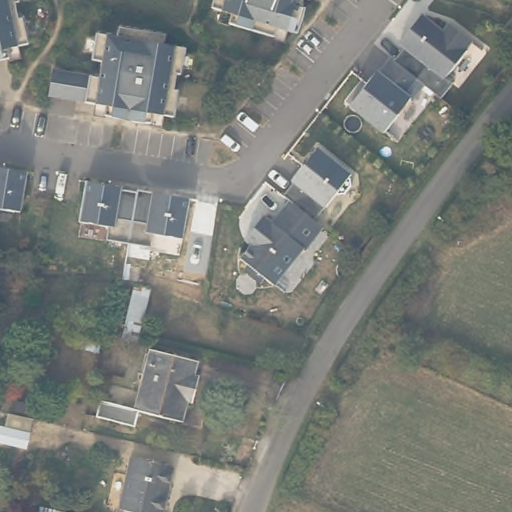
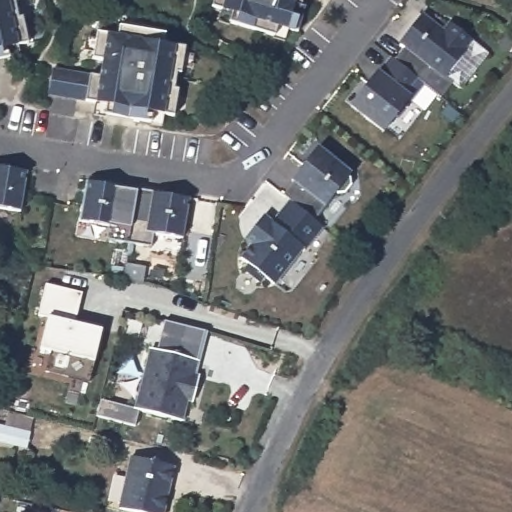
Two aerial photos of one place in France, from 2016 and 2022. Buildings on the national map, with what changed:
unchanged [(0,0),(19,0),(19,1),(14,1),(18,17),(22,16),(28,43),(7,47),(9,57),(0,59),(0,0)]
unchanged [(301,5),(305,6),(297,32),(279,26),(277,26),(275,31),(274,35),(272,35),(228,21),(231,12),(211,6),(213,0),(302,0),(301,5)]
unchanged [(404,46),(399,42),(421,14),(442,30),(449,22),(472,40),(465,48),(466,49),(444,76),(452,82),(440,97),(423,84),(411,99),(409,97),(383,131),(350,104),(377,70),(379,72),(391,57),(394,59),(404,46)]
unchanged [(505,24),(512,16),(512,30),(505,24)]
unchanged [(105,104),(84,101),(48,95),(52,68),(98,76),(101,60),(91,58),(96,32),(117,35),(118,25),(165,33),(163,43),(184,46),(180,73),(176,72),(173,88),(178,89),(173,115),(152,112),(151,122),(133,119),(104,114),(105,104)]
unchanged [(251,230),(263,215),(272,222),(290,200),(283,195),(283,194),(293,181),(291,179),(317,147),(351,173),(348,176),(350,177),(351,184),(345,192),(337,193),(336,192),(314,219),(319,224),(322,227),(305,249),(303,248),(274,284),(264,276),(262,279),(256,280),(247,273),(246,267),(248,264),(241,258),(252,244),(245,239),(251,230)]
unchanged [(20,211),(0,208),(0,166),(27,170),(20,211)]
unchanged [(182,238),(153,233),(151,247),(116,241),(106,239),(108,226),(79,221),(86,180),(122,186),(122,188),(137,191),(137,189),(154,191),(189,197),(182,238)]
unchanged [(7,285),(0,285),(0,273),(8,274),(7,285)]
new [(94,361),(88,381),(46,371),(50,351),(39,348),(47,318),(38,315),(46,283),(83,291),(74,321),(102,328),(94,361)]
unchanged [(134,284),(149,287),(148,294),(137,338),(121,335),(132,290),(134,284)]
unchanged [(404,341),(397,338),(402,329),(409,333),(404,341)]
demolished [(79,342),(77,352),(70,351),(73,341),(79,342)]
demolished [(87,341),(99,344),(98,351),(85,348),(87,341)]
unchanged [(197,360),(193,375),(199,376),(192,401),(186,399),(181,421),(138,410),(134,425),(95,415),(100,398),(134,408),(150,348),(197,360)]
unchanged [(17,400),(29,403),(27,412),(15,409),(17,400)]
unchanged [(25,447),(0,442),(0,426),(29,432),(25,447)]
unchanged [(163,512),(136,512),(119,508),(131,456),(173,466),(163,512)]

